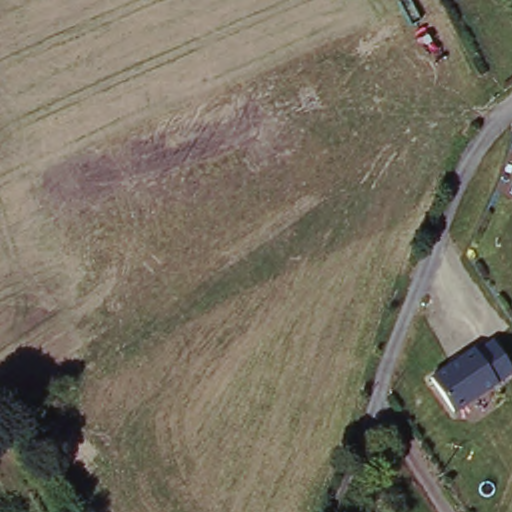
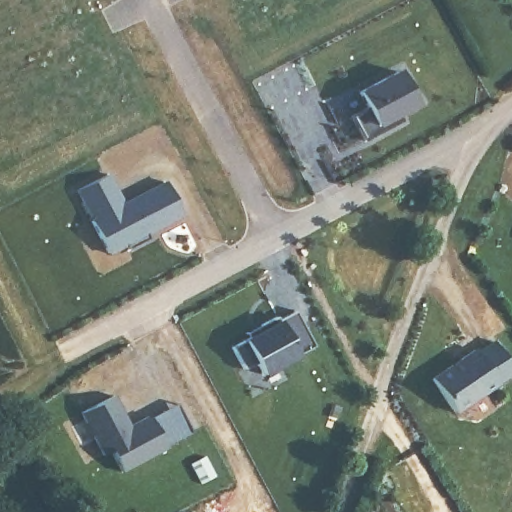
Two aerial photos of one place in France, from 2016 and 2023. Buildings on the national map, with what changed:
new [(366,109),(357,93),(396,73),(404,88),(408,85),(417,101),(397,112),(401,121),(362,140),(351,116),(366,109)]
new [(107,174),(123,204),(166,182),(182,214),(157,227),(155,223),(144,229),(149,238),(128,249),(125,244),(108,253),(91,221),(93,220),(77,190),(107,174)]
unchanged [(512,373),(454,410),(428,376),(491,335),(512,366),(512,373)]
new [(109,450),(103,455),(80,413),(113,397),(130,427),(174,403),(192,435),(121,471),(109,450)]
unchanged [(397,510),(396,512),(375,512),(380,502),(397,510)]

